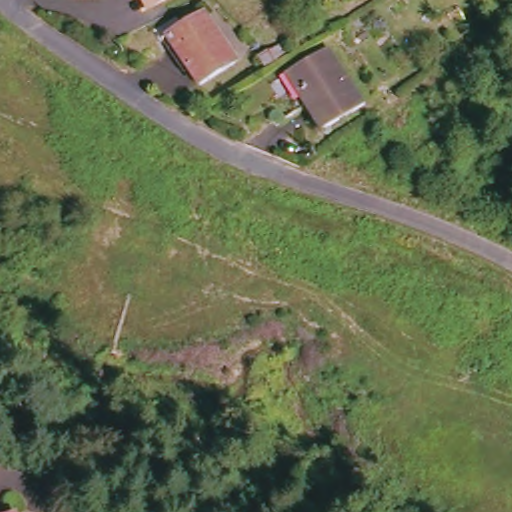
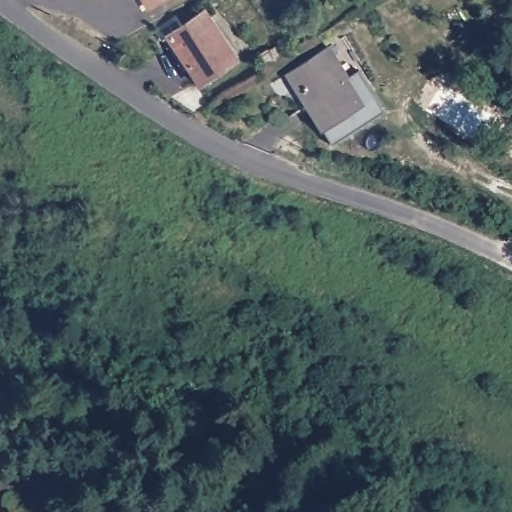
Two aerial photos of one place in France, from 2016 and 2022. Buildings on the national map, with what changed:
unchanged [(151,10),(145,0),(163,0),(165,3),(151,10)]
unchanged [(163,0),(170,0),(165,3),(163,0)]
unchanged [(208,11),(238,62),(201,85),(170,34),(208,11)]
unchanged [(255,58),(276,45),(284,56),(263,70),(255,58)]
unchanged [(330,49),(365,106),(325,132),(290,76),(330,49)]

